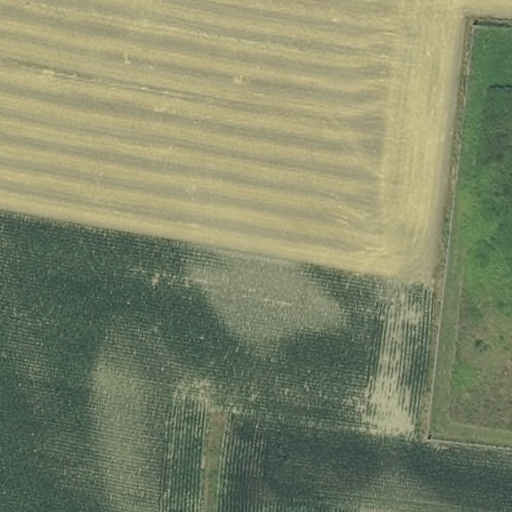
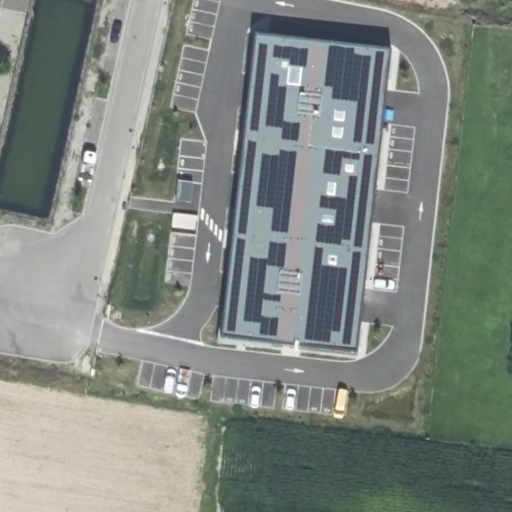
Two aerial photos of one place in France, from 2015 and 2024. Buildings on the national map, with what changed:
new [(221,312),(223,312),(228,268),(226,268),(231,213),(235,214),(240,169),(236,169),(242,114),(246,114),(251,70),(247,70),(251,34),(305,40),(305,42),(391,52),(357,356),(271,347),(271,350),(217,343),(221,312)]
new [(178,182),(192,184),(191,204),(176,202),(178,182)]

